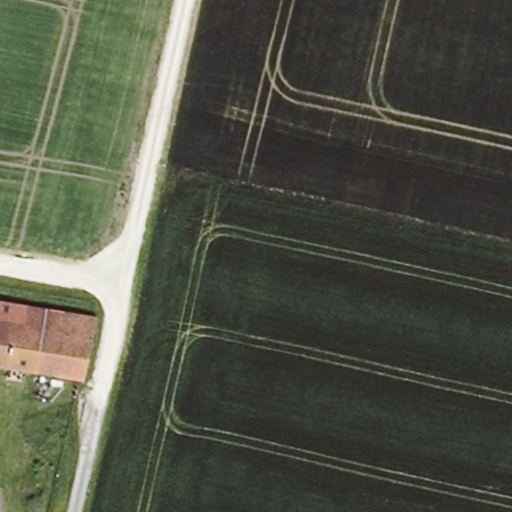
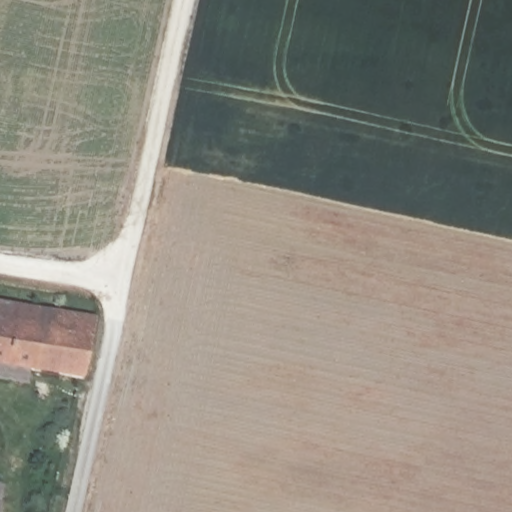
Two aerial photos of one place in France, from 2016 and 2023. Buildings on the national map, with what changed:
unchanged [(100,325),(97,342),(0,322),(0,305),(96,324),(100,325)]
unchanged [(82,385),(0,369),(0,322),(97,342),(89,386),(82,385)]

